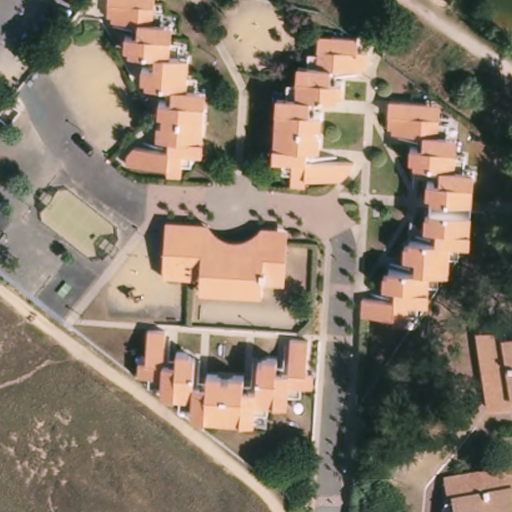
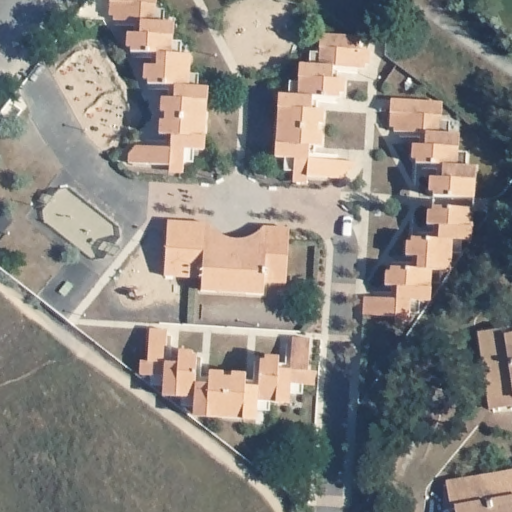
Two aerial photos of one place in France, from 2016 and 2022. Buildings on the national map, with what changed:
unchanged [(168,25),(177,25),(176,44),(185,44),(184,57),(194,59),(193,76),(202,77),(201,92),(211,93),(210,109),(208,137),(207,156),(198,154),(196,169),(187,169),(187,179),(174,178),(174,171),(133,168),(133,160),(141,152),(175,154),(175,141),(163,140),(164,130),(169,126),(169,116),(165,112),(165,103),(169,103),(171,91),(149,89),(150,78),(145,74),(145,71),(156,71),(156,59),(132,56),(131,47),(128,43),(128,38),(144,38),(144,27),(118,24),(118,20),(113,19),(114,5),(114,0),(159,0),(158,8),(158,12),(168,13),(168,25)]
unchanged [(288,171),(287,158),(279,157),(280,139),(282,113),(283,96),(293,96),(294,83),(303,83),(306,65),(315,65),(316,52),(325,52),(325,47),(327,35),(339,36),(365,38),(365,49),(375,50),(374,65),(368,64),(368,69),(338,68),(338,79),(349,80),(349,89),(345,92),(341,99),(324,97),(325,111),(327,111),(327,120),(322,123),(321,133),(324,136),(325,147),(321,147),(320,158),(358,161),(357,169),(347,176),(342,178),(311,176),(310,183),(295,182),(297,172),(288,171)]
unchanged [(461,153),(461,154),(471,154),(469,168),(478,168),(476,200),(435,197),(436,193),(430,188),(432,178),(444,178),(443,165),(420,163),(420,161),(415,155),(416,145),(427,146),(428,134),(400,132),(400,126),(394,127),(395,112),(396,99),(406,100),(434,102),(446,102),(445,116),(444,121),(453,122),(452,135),(461,135),(461,153)]
unchanged [(397,325),(398,316),(366,315),(367,298),(399,299),(399,288),(387,287),(387,278),(392,274),(392,268),(418,269),(418,258),(406,257),(407,248),(412,243),(413,238),(439,240),(440,227),(427,226),(429,218),(435,211),(435,208),(475,210),(473,242),(464,242),(462,255),(455,255),(454,272),(442,272),(442,284),(434,284),(432,302),(422,302),(420,315),(411,315),(411,326),(397,325)]
unchanged [(171,224),(214,228),(216,230),(221,234),(229,239),(234,241),(239,242),(243,243),(250,241),(255,239),(268,231),(293,233),(290,288),(267,287),(269,264),(282,265),(283,261),(286,242),(266,242),(259,246),(259,250),(258,255),(218,251),(217,244),(217,241),(209,237),(170,234),(171,224)]
unchanged [(209,237),(217,241),(217,244),(218,251),(258,255),(259,250),(259,246),(266,242),(286,242),(283,261),(282,265),(269,264),(267,287),(266,298),(203,294),(204,282),(168,280),(170,234),(209,237)]
unchanged [(182,404),(183,395),(166,393),(165,384),(151,382),(151,373),(142,372),(143,359),(151,359),(151,327),(169,328),(168,359),(178,360),(180,349),(189,349),(195,354),(198,354),(197,372),(210,374),(211,370),(221,369),(224,374),(228,375),(235,371),(247,372),(246,376),(259,378),(262,358),(264,360),(270,355),(279,356),(280,367),(291,369),(294,338),(311,339),(310,370),(317,371),(315,385),(305,384),(305,393),(290,393),(289,400),(269,399),(268,409),(257,408),(256,418),(237,417),(211,415),(208,415),(195,414),(194,405),(182,404)]
unchanged [(494,336),(512,336),(512,401),(490,405),(480,339),(494,336)]
unchanged [(460,512),(460,509),(453,511),(447,485),(512,474),(512,512),(460,512)]

